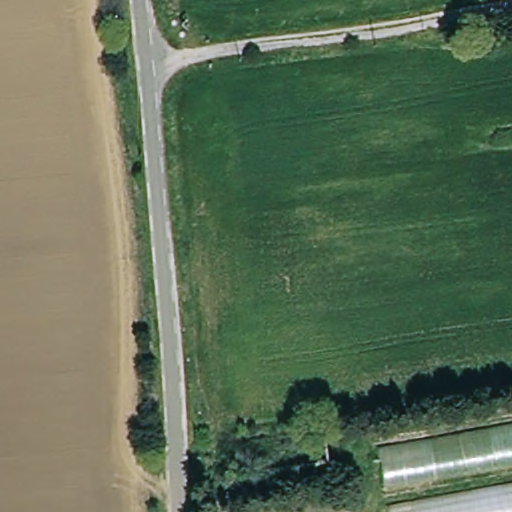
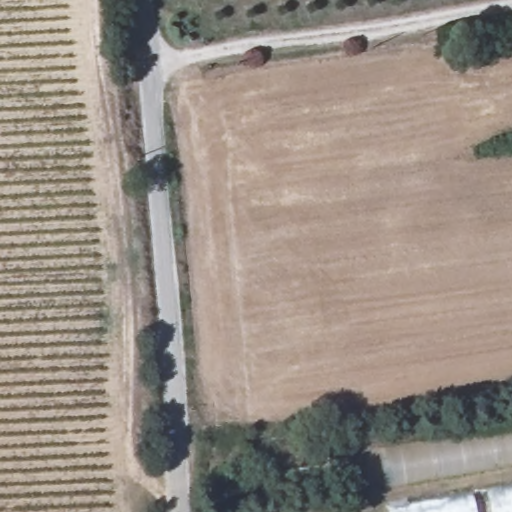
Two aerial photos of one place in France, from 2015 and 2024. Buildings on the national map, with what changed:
unchanged [(512,423),(512,512),(390,512),(379,447),(512,423)]

